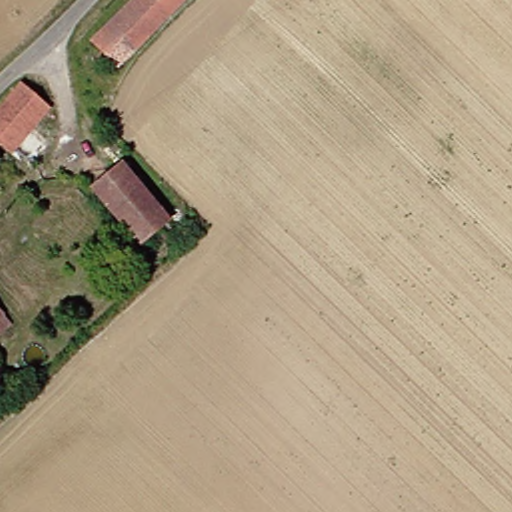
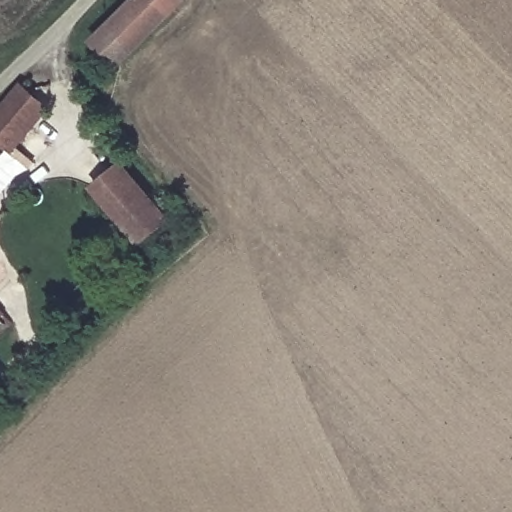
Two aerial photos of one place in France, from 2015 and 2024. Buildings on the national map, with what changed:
unchanged [(190,2),(125,68),(100,44),(142,0),(188,0),(190,2)]
unchanged [(37,126),(57,143),(40,163),(23,145),(18,150),(0,135),(0,113),(25,84),(53,108),(37,126)]
unchanged [(0,153),(7,159),(0,168),(0,153)]
unchanged [(130,164),(175,219),(145,243),(99,187),(130,164)]
unchanged [(0,300),(5,306),(12,313),(22,324),(0,344),(0,300)]

